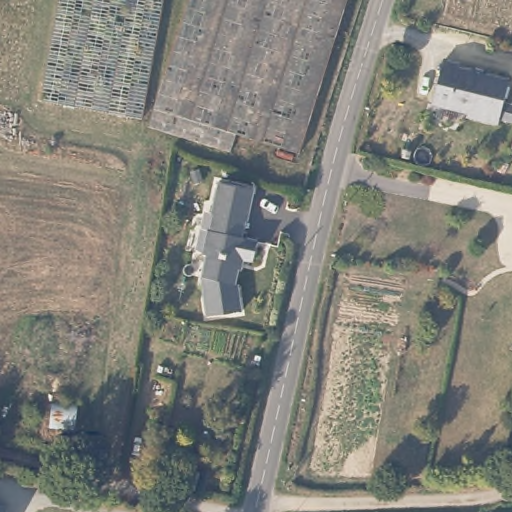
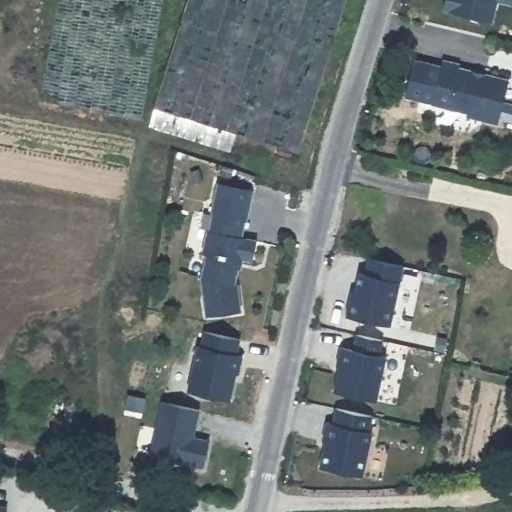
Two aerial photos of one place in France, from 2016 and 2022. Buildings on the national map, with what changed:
unchanged [(40,98),(58,0),(162,0),(140,116),(40,98)]
unchanged [(234,133),(229,151),(148,126),(186,0),(344,0),(297,153),(234,133)]
new [(512,0),(512,5),(496,1),(491,22),(440,10),(443,0),(512,0)]
unchanged [(407,96),(416,59),(441,65),(431,103),(407,96)]
unchanged [(458,69),(473,72),(472,75),(481,77),(482,75),(508,81),(498,120),(431,103),(442,61),(458,65),(458,69)]
unchanged [(245,313),(212,317),(209,295),(214,274),(207,273),(206,249),(210,250),(212,226),(210,225),(213,209),(214,209),(218,178),(253,183),(248,214),(246,214),(244,231),(259,233),(257,253),(244,251),(239,277),(242,277),(242,278),(245,313)]
new [(350,298),(353,298),(359,272),(366,273),(369,258),(404,266),(389,326),(346,315),(350,298)]
new [(198,329),(245,338),(229,405),(183,394),(198,329)]
new [(340,373),(343,373),(345,364),(339,363),(344,346),(357,348),(360,333),(387,339),(383,355),(389,356),(379,400),(337,390),(340,373)]
new [(160,400),(199,410),(193,436),(209,439),(202,467),(149,455),(160,400)]
unchanged [(321,466),(327,441),(323,441),(328,423),(334,425),(337,410),(372,418),(369,432),(373,433),(363,474),(321,466)]
demolished [(220,467),(212,491),(173,479),(178,456),(220,467)]
unchanged [(6,512),(0,512),(0,505),(8,506),(6,512)]

